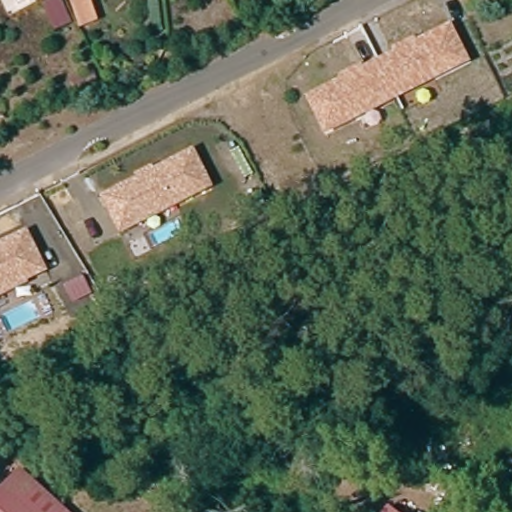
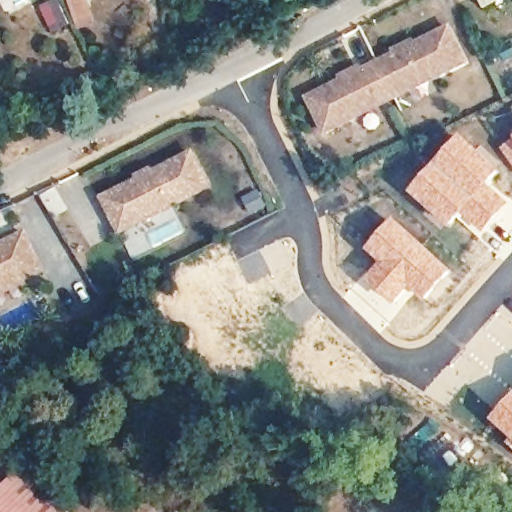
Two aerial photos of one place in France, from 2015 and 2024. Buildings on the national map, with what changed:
unchanged [(64,27),(52,32),(40,5),(50,0),(51,0),(64,27)]
unchanged [(93,24),(80,27),(71,0),(86,0),(93,24)]
unchanged [(471,63),(325,134),(303,93),(451,21),(471,63)]
new [(461,135),(500,171),(490,184),(510,203),(479,236),(459,219),(449,230),(408,192),(461,135)]
new [(512,140),(512,168),(499,149),(512,140)]
unchanged [(195,148),(213,185),(121,232),(101,193),(195,148)]
new [(378,263),(366,251),(396,218),(453,272),(423,302),(410,291),(393,307),(363,281),(378,263)]
unchanged [(49,271),(0,294),(0,241),(28,228),(49,271)]
new [(512,396),(512,442),(490,420),(512,396)]
unchanged [(0,512),(0,493),(19,473),(62,512),(0,512)]
unchanged [(387,512),(386,512),(386,511),(387,512)]

